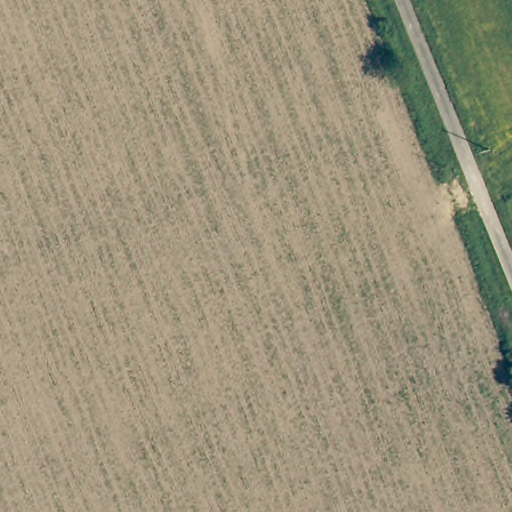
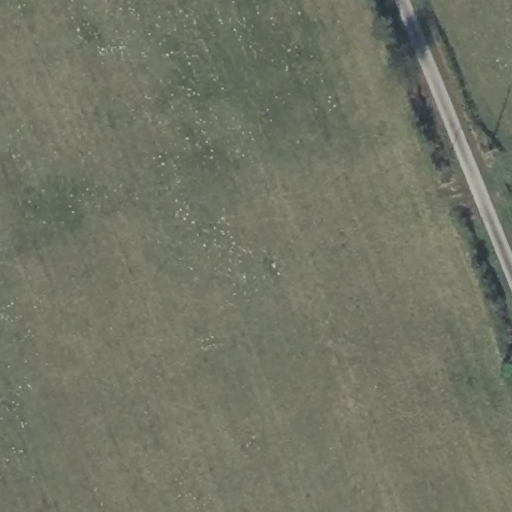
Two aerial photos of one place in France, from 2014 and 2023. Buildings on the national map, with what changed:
[]

